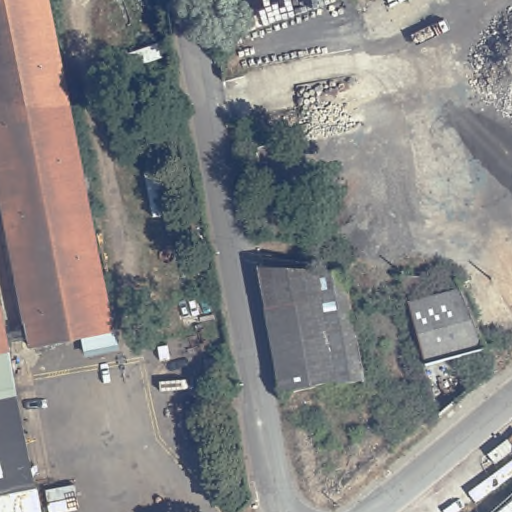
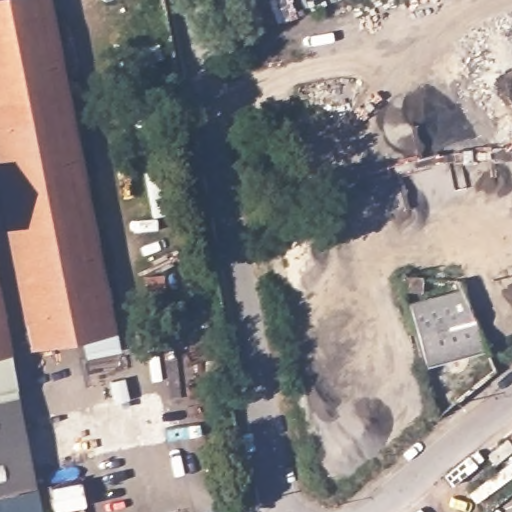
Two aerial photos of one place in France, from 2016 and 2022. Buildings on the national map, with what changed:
unchanged [(0,2),(11,0),(50,0),(117,335),(37,350),(0,166),(0,2)]
demolished [(260,268),(346,273),(356,329),(365,379),(337,383),(337,380),(282,390),(260,268)]
unchanged [(404,289),(401,275),(423,276),(427,290),(404,289)]
unchanged [(408,305),(462,287),(485,345),(426,368),(408,305)]
unchanged [(187,299),(219,292),(225,325),(193,330),(182,332),(177,301),(187,299)]
unchanged [(0,358),(0,294),(12,355),(0,358)]
unchanged [(214,330),(226,328),(229,345),(216,346),(214,330)]
unchanged [(0,385),(0,358),(12,355),(17,381),(0,385)]
unchanged [(0,501),(0,385),(17,381),(40,493),(0,501)]
unchanged [(0,512),(0,501),(40,493),(45,512),(0,512)]

